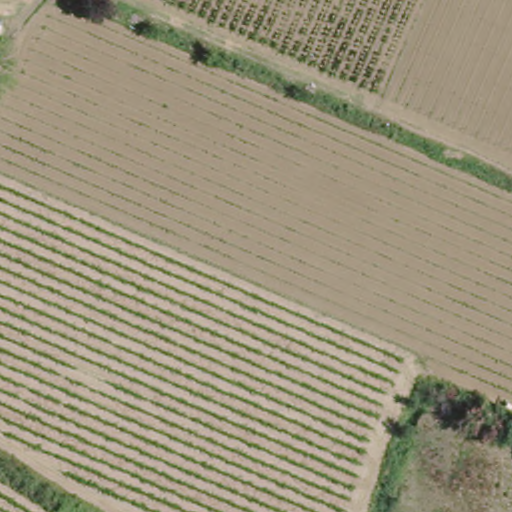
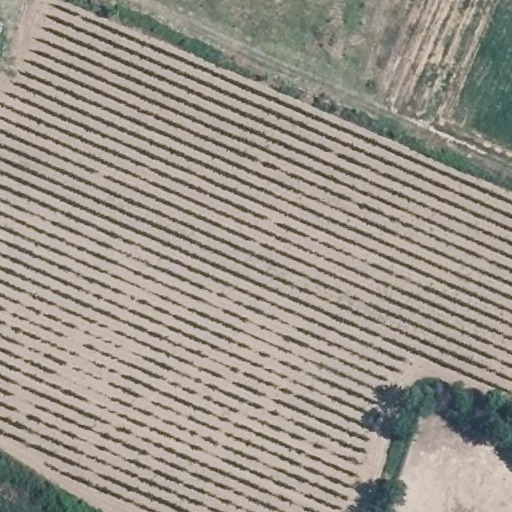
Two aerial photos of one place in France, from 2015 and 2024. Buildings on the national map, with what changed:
unchanged [(3,26),(0,34),(0,25),(3,26)]

